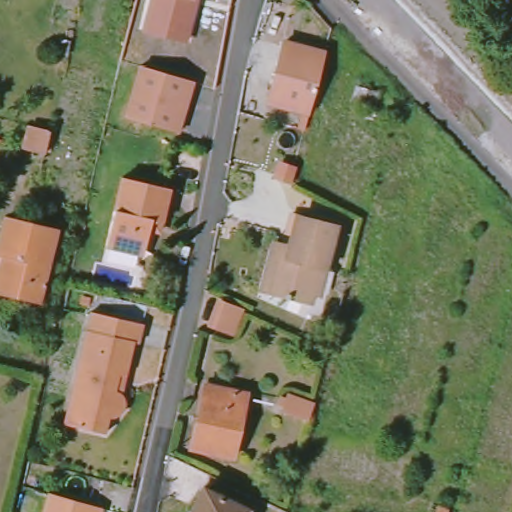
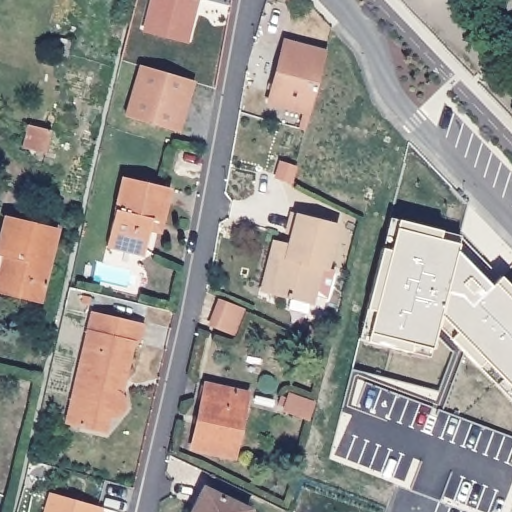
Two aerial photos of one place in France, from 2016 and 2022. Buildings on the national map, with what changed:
unchanged [(186,44),(141,33),(150,0),(199,0),(186,44)]
unchanged [(322,64),(309,115),(268,104),(284,43),(324,54),(322,64)]
unchanged [(198,83),(183,135),(128,118),(142,66),(198,83)]
unchanged [(51,130),(45,152),(25,146),(31,125),(51,130)]
unchanged [(154,228),(144,225),(140,245),(133,249),(101,242),(108,211),(118,173),(165,184),(157,218),(156,222),(154,228)]
unchanged [(269,291),(279,254),(286,256),(296,216),(336,226),(326,269),(320,267),(311,301),(269,291)]
unchanged [(9,255),(1,253),(10,219),(60,231),(44,301),(0,290),(0,293),(0,260),(7,262),(9,255)]
new [(442,231),(439,240),(459,244),(457,252),(491,287),(501,277),(512,288),(512,390),(484,361),(478,367),(450,339),(456,333),(441,317),(431,350),(412,345),(410,353),(366,342),(374,311),(366,309),(382,249),(390,251),(398,220),(442,231)]
unchanged [(241,308),(232,333),(216,327),(226,302),(241,308)]
unchanged [(138,323),(133,343),(128,342),(120,376),(113,374),(109,391),(117,393),(124,398),(126,404),(125,411),(123,415),(118,418),(115,419),(110,418),(103,417),(99,433),(71,427),(76,404),(64,401),(85,311),(138,323)]
unchanged [(191,449),(205,385),(246,394),(233,458),(191,449)]
unchanged [(287,409),(288,406),(283,404),(286,397),(291,399),(293,394),(318,404),(313,420),(287,409)]
unchanged [(247,510),(246,512),(192,512),(203,489),(247,510)]
unchanged [(45,512),(51,490),(98,503),(103,505),(100,512),(45,512)]

